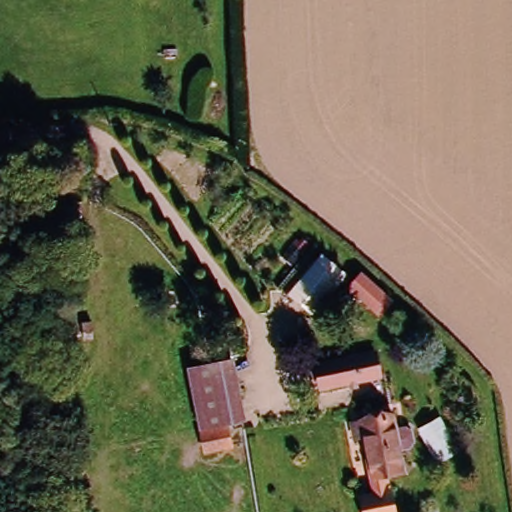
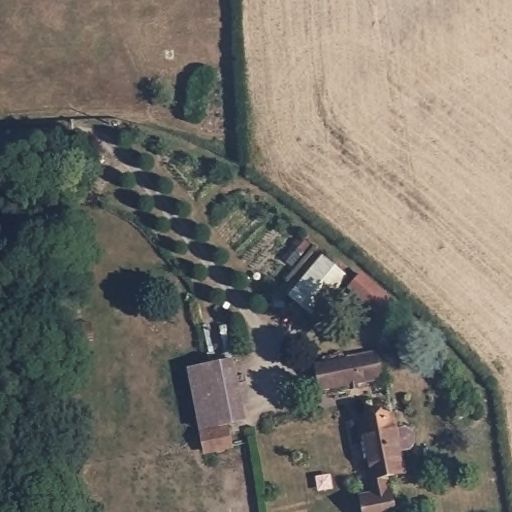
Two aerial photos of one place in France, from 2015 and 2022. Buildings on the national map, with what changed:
unchanged [(319,261),(348,282),(316,321),(286,298),(319,261)]
unchanged [(234,362),(244,421),(198,428),(187,368),(234,362)]
unchanged [(358,394),(318,394),(316,367),(358,366),(358,394)]
unchanged [(398,469),(365,470),(361,413),(394,411),(398,469)]

